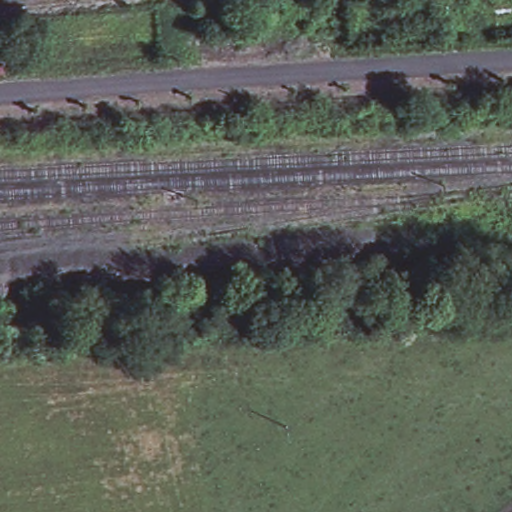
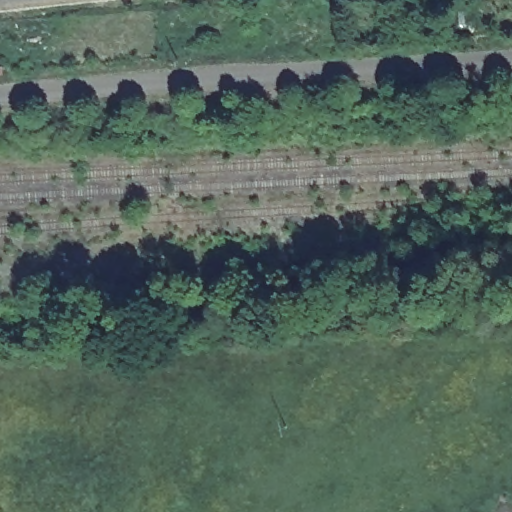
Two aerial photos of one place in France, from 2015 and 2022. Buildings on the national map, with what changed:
unchanged [(501,227),(502,244),(474,246),(472,229),(501,227)]

